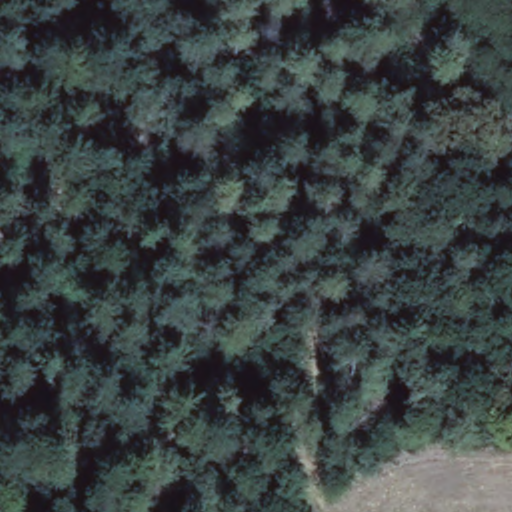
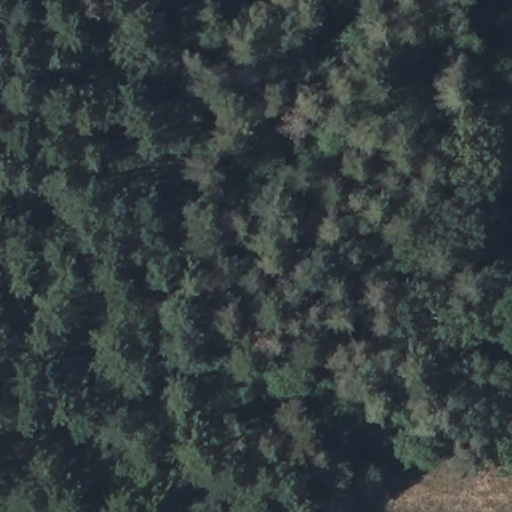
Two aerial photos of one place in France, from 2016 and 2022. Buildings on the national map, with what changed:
[]

